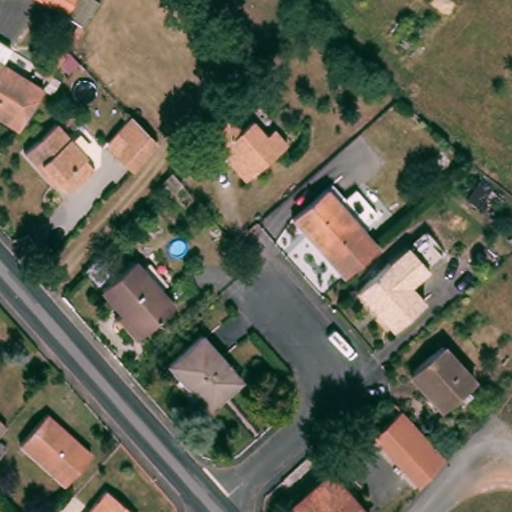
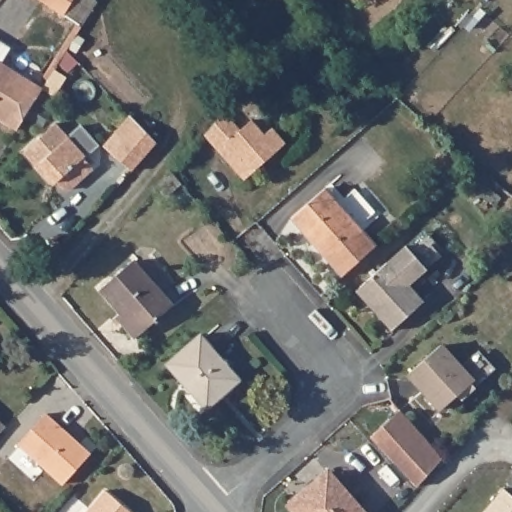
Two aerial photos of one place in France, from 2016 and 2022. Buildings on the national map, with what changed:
unchanged [(0,56),(0,50),(3,51),(0,56)]
unchanged [(16,135),(0,126),(0,69),(41,91),(16,135)]
unchanged [(154,129),(128,156),(111,139),(123,126),(114,116),(129,101),(154,129)]
unchanged [(255,126),(266,116),(279,131),(287,124),(300,139),(293,146),(259,176),(219,130),(238,108),(255,126)]
unchanged [(56,121),(89,152),(87,154),(98,165),(73,191),(45,163),(41,166),(26,153),(56,121)]
unchanged [(378,244),(343,275),(292,216),(326,185),(378,244)]
unchanged [(172,307),(134,340),(120,323),(116,319),(122,313),(101,289),(133,261),(172,307)]
unchanged [(428,305),(395,334),(359,293),(391,264),(428,305)]
unchanged [(240,381),(206,411),(167,365),(201,336),(240,381)]
unchanged [(475,385),(443,414),(409,375),(440,346),(475,385)]
unchanged [(447,457),(418,484),(372,435),(401,409),(447,457)]
unchanged [(45,416),(85,459),(56,487),(15,445),(45,416)]
unchanged [(0,431),(0,417),(6,424),(0,431)]
unchanged [(364,512),(297,512),(291,505),(329,471),(364,512)]
new [(504,489),(512,496),(512,512),(484,512),(504,489)]
unchanged [(106,491),(129,512),(86,512),(106,491)]

